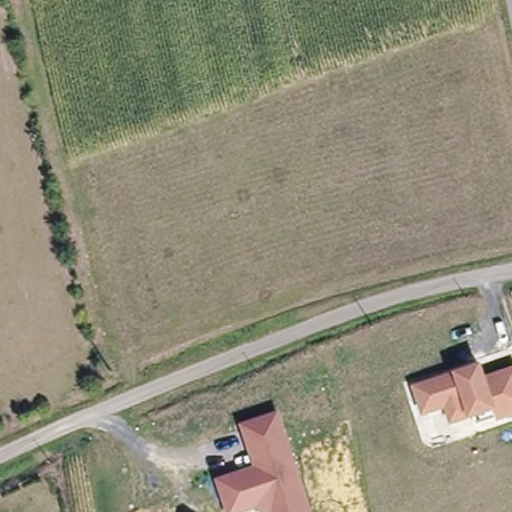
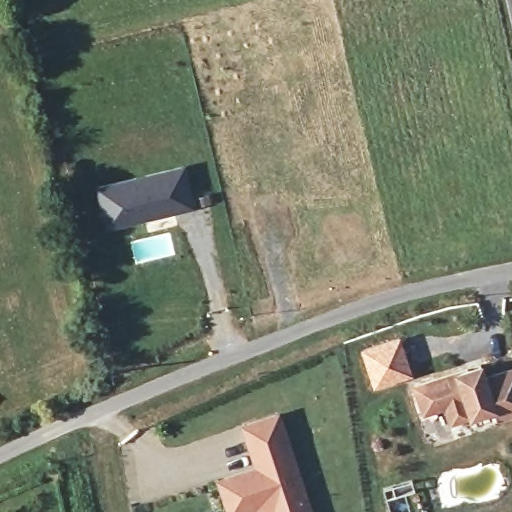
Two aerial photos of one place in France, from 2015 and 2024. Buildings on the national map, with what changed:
new [(106,230),(96,187),(186,164),(195,207),(106,230)]
new [(399,337),(411,373),(375,385),(363,349),(399,337)]
unchanged [(423,412),(415,386),(467,368),(469,372),(480,368),(483,378),(512,368),(512,413),(497,418),(493,407),(471,415),(451,421),(446,404),(423,412)]
unchanged [(271,512),(257,503),(231,511),(220,477),(282,458),(276,441),(254,448),(245,423),(279,412),(310,512),(271,512)]

